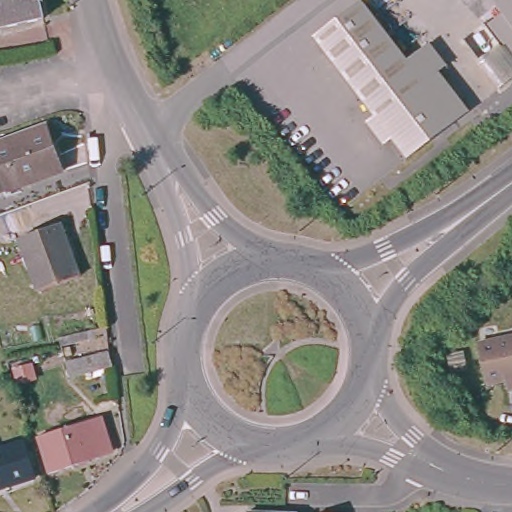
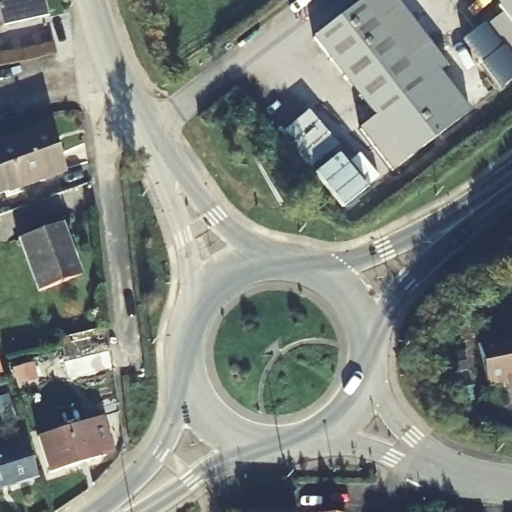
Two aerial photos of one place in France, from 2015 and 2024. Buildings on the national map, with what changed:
unchanged [(0,25),(0,0),(33,0),(35,21),(0,25)]
unchanged [(365,0),(409,59),(432,41),(449,64),(440,70),(472,110),(407,159),(392,139),(384,145),(367,122),(375,116),(314,36),(361,0),(365,0)]
new [(464,44),(485,27),(502,14),(495,5),(501,0),(512,0),(512,79),(500,90),(464,44)]
unchanged [(45,129),(60,175),(0,197),(0,143),(45,129)]
unchanged [(75,277),(30,292),(27,283),(12,238),(57,224),(72,268),(75,277)]
unchanged [(512,384),(487,389),(487,382),(479,349),(512,342),(512,384)]
unchanged [(105,351),(111,366),(70,383),(64,367),(105,351)]
unchanged [(102,411),(115,455),(102,458),(104,464),(51,482),(35,433),(102,411)]
unchanged [(37,485),(0,497),(0,444),(21,437),(37,485)]

